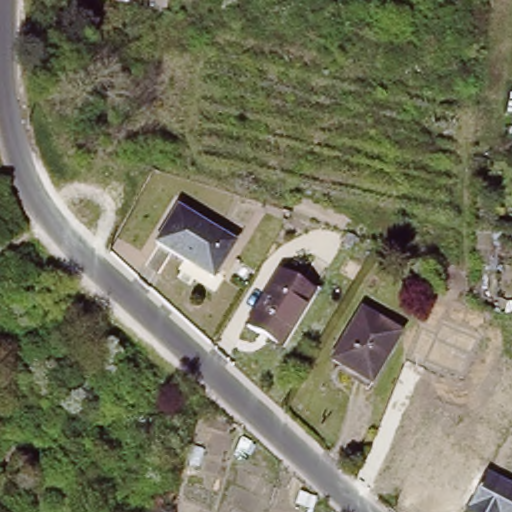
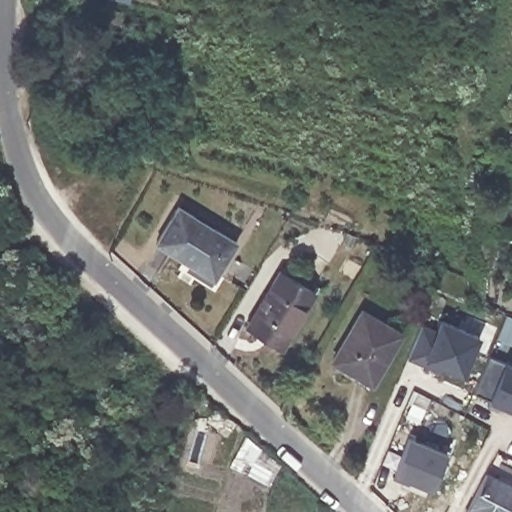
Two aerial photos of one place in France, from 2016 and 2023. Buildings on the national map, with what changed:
unchanged [(128,1),(122,0),(128,0),(128,1)]
unchanged [(236,246),(214,282),(157,248),(179,212),(236,246)]
unchanged [(262,333),(247,325),(278,271),(315,292),(289,337),(284,345),(262,333)]
unchanged [(401,338),(373,386),(336,363),(364,316),(401,338)]
new [(442,366),(441,373),(407,358),(423,321),(437,328),(441,318),(480,337),(464,376),(442,366)]
new [(473,391),(490,355),(505,361),(512,364),(512,411),(487,400),(473,391)]
new [(432,488),(408,480),(407,485),(392,477),(393,472),(410,436),(447,453),(432,488)]
unchanged [(512,512),(473,512),(476,506),(492,474),(512,484),(512,512)]

